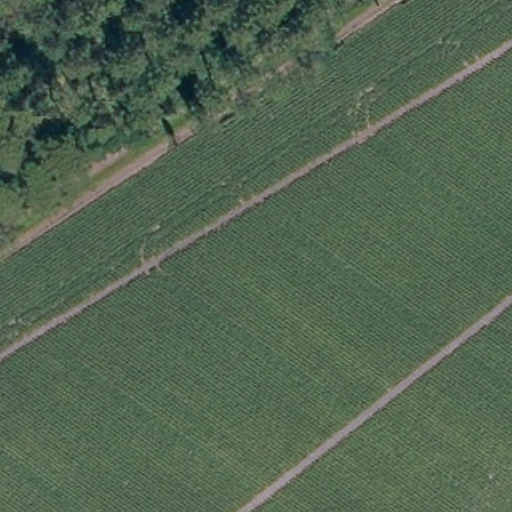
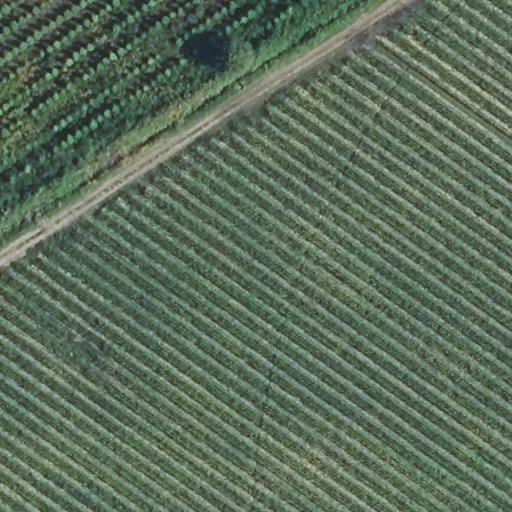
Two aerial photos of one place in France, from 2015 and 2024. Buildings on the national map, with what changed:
[]

